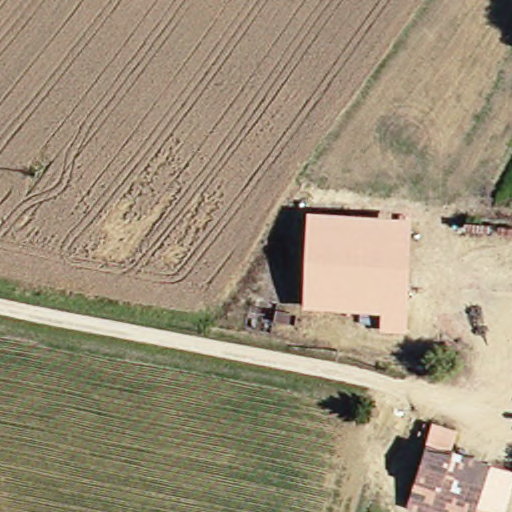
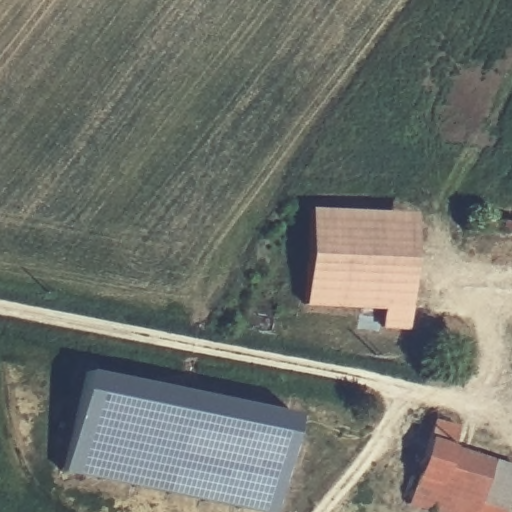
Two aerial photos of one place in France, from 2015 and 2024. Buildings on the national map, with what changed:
unchanged [(301,261),(303,211),(405,214),(403,263),(301,261)]
unchanged [(403,263),(402,308),(378,307),(378,286),(300,284),(301,261),(403,263)]
new [(293,416),(273,512),(247,512),(63,475),(85,372),(293,416)]
unchanged [(446,448),(483,462),(467,512),(421,512),(400,505),(426,416),(453,425),(446,448)]
unchanged [(483,462),(507,471),(493,512),(467,512),(483,462)]

